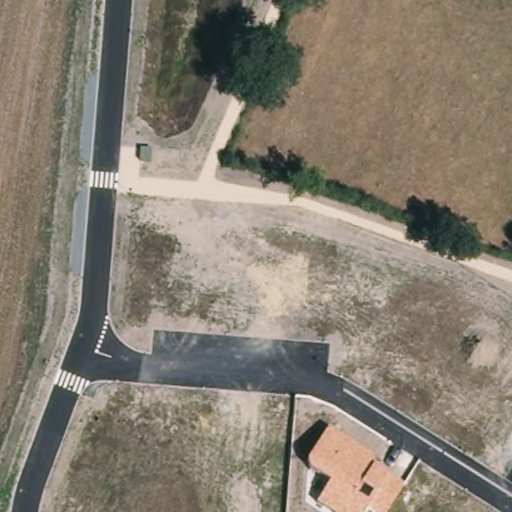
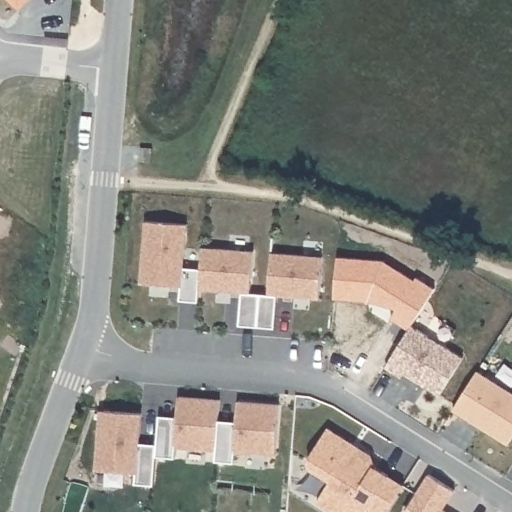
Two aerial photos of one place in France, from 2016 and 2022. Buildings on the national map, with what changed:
new [(19,6),(13,0),(24,0),(19,6)]
new [(137,225),(179,229),(175,272),(193,273),(194,252),(245,256),(242,298),(260,299),(263,257),(314,262),(311,303),(269,299),(266,332),(231,330),(234,297),(192,293),(191,306),(172,305),(173,291),(133,287),(137,225)]
new [(400,377),(385,368),(412,325),(462,357),(438,394),(404,374),(400,377)]
new [(477,371),(512,392),(512,433),(506,443),(453,410),(477,371)]
new [(151,420),(169,421),(170,401),(212,404),(210,424),(228,426),(230,405),(271,409),(267,460),(227,457),(226,467),(207,466),(208,455),(167,452),(166,462),(147,461),(145,489),(127,488),(128,477),(87,474),(92,414),(133,418),(131,447),(149,449),(150,428),(151,420)]
unchanged [(331,481),(309,468),(308,459),(328,428),(371,456),(372,466),(388,475),(404,485),(386,512),(374,512),(368,508),(365,512),(334,512),(318,502),(331,481)]
new [(455,491),(444,509),(449,512),(405,512),(428,474),(455,491)]

